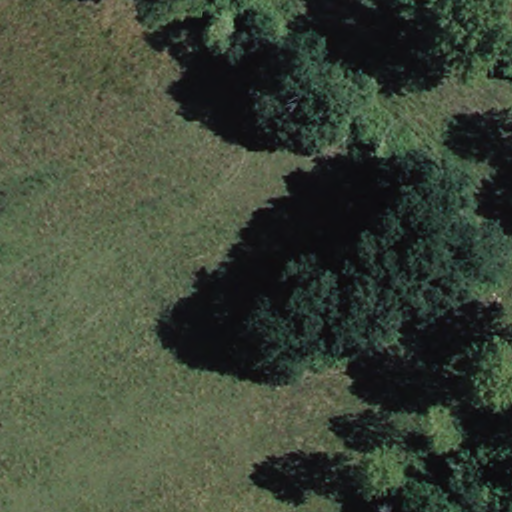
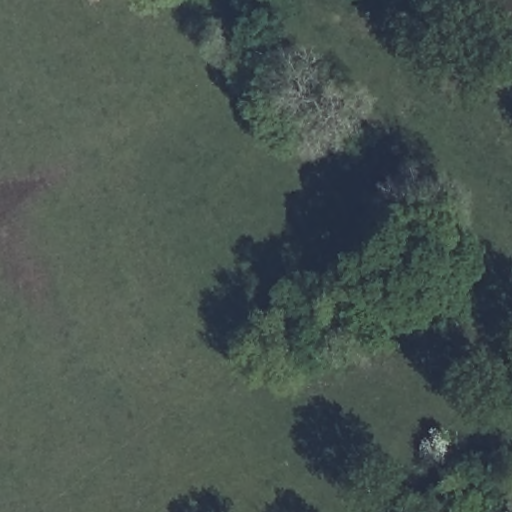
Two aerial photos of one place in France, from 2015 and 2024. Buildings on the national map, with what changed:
[]

